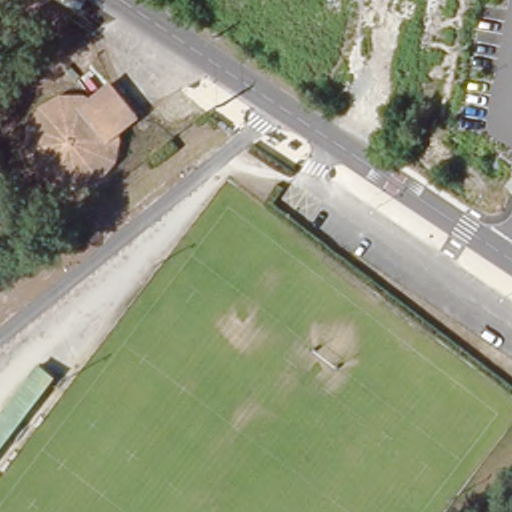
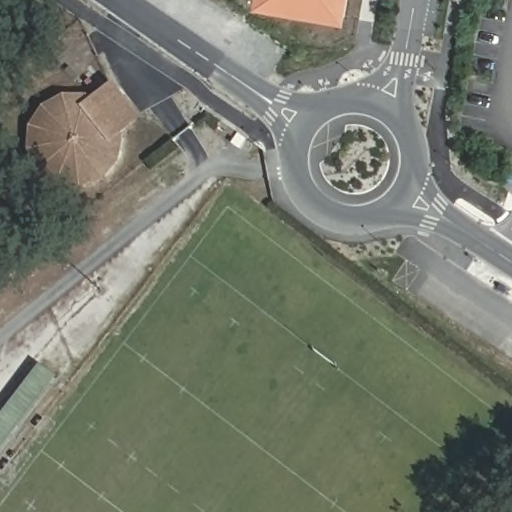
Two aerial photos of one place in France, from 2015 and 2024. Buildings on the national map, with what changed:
new [(253,9),(255,0),(347,0),(342,24),(253,9)]
unchanged [(143,127),(121,142),(122,152),(121,162),(118,171),(112,179),(104,185),(95,190),(85,192),(75,191),(66,188),(57,183),(50,175),(45,166),(41,156),(41,146),(41,142),(45,133),(50,124),(57,118),(65,113),(69,112),(80,110),(92,111),(102,114),(121,99),(143,127)]
unchanged [(55,385),(0,455),(0,420),(37,372),(55,385)]

